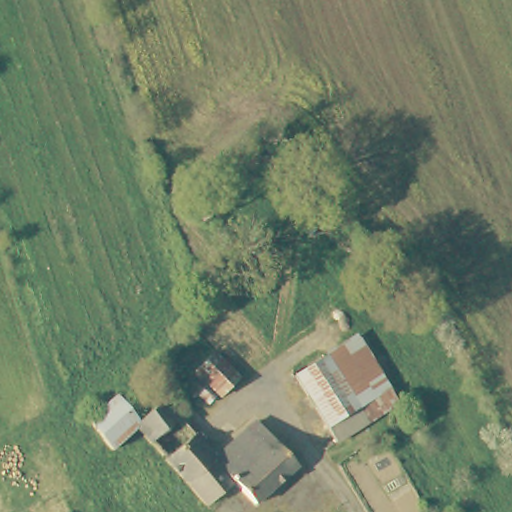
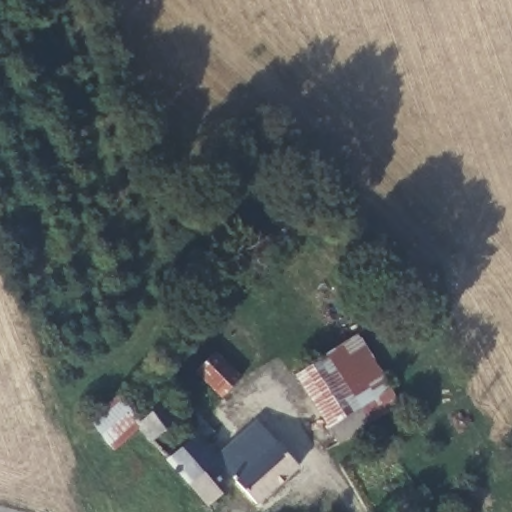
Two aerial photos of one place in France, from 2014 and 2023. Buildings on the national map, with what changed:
unchanged [(355,339),(398,403),(367,424),(325,359),(355,339)]
unchanged [(211,355),(234,381),(216,398),(191,372),(211,355)]
unchanged [(325,359),(367,424),(339,443),(296,378),(325,359)]
unchanged [(136,423),(164,400),(167,403),(180,418),(152,442),(139,427),(137,428),(113,451),(89,421),(115,399),(136,423)]
unchanged [(197,436),(217,458),(258,422),(299,466),(258,502),(237,479),(207,503),(168,462),(197,436)]

